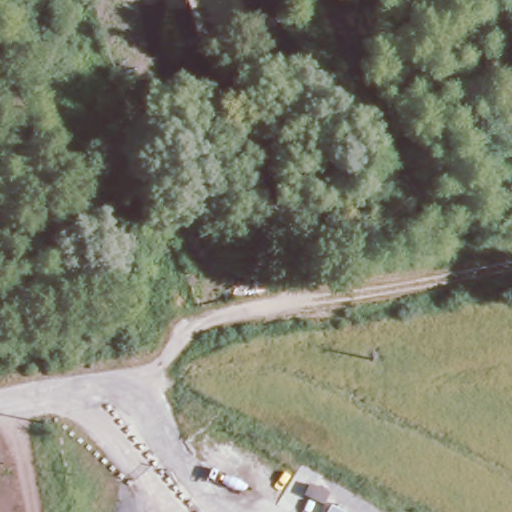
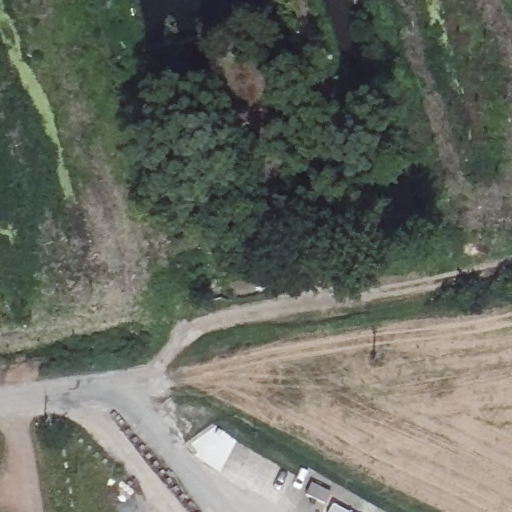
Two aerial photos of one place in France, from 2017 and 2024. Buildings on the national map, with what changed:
unchanged [(336,499),(330,509),(312,501),(317,489),(336,499)]
unchanged [(339,509),(345,512),(337,512),(339,509)]

